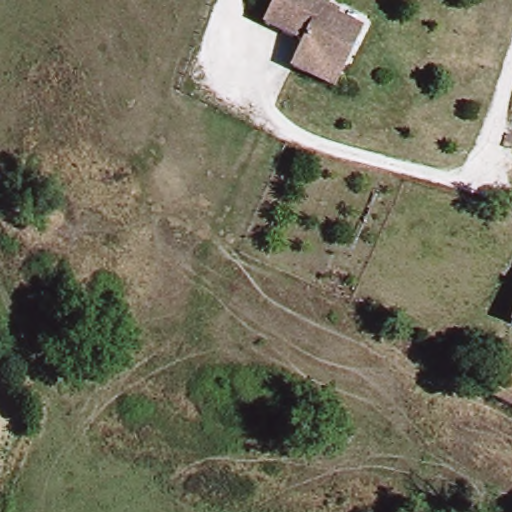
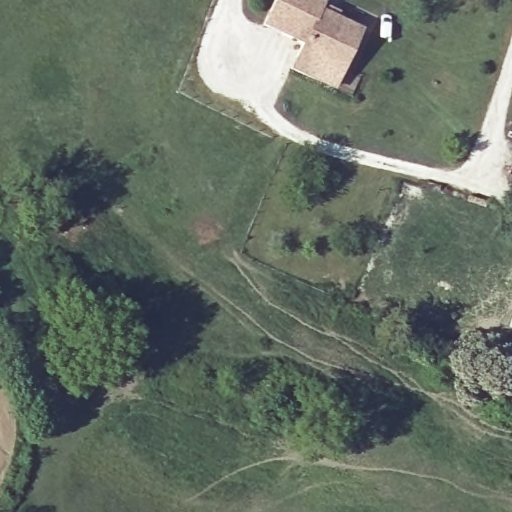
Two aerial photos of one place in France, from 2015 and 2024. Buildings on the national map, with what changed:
unchanged [(332,86),(291,67),(302,46),(261,26),(275,0),(318,0),(322,2),(317,14),(358,34),(332,86)]
unchanged [(512,295),(512,327),(501,323),(512,295)]
unchanged [(512,413),(491,403),(495,390),(497,385),(512,391),(512,413)]

